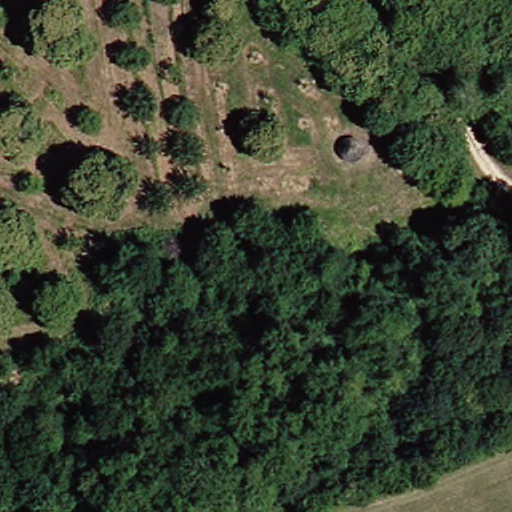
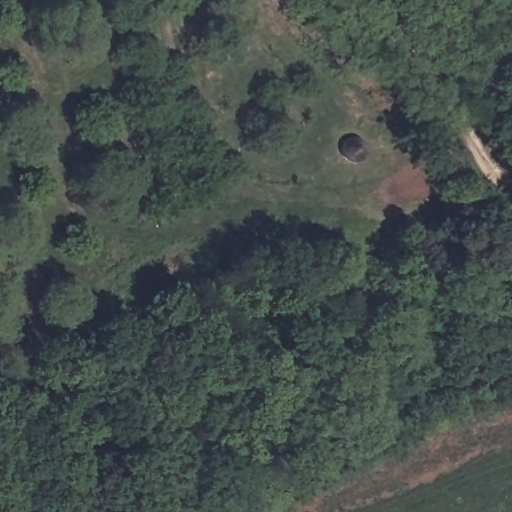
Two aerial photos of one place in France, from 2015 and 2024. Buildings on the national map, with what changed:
unchanged [(361,136),(368,142),(368,152),(352,162),(342,159),(339,151),(341,142),(350,137),(361,136)]

